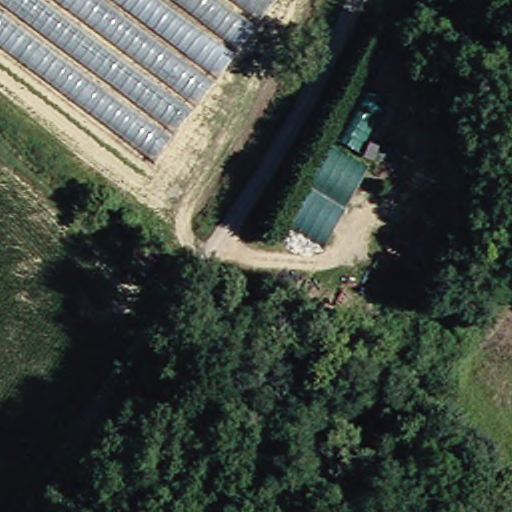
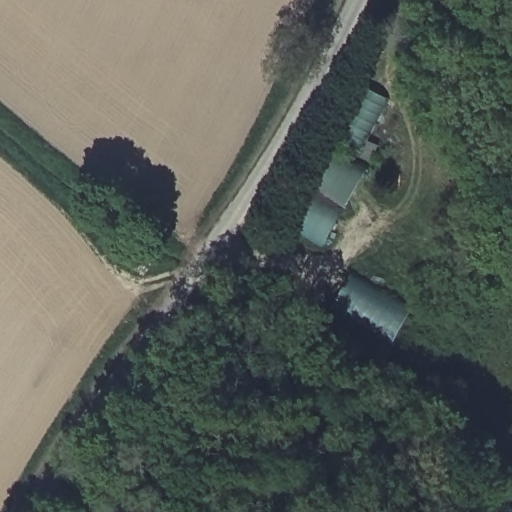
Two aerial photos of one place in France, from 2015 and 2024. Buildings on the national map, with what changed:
new [(151,160),(0,46),(0,0),(106,0),(211,78),(151,160)]
unchanged [(211,78),(106,0),(164,0),(234,51),(211,78)]
unchanged [(234,51),(164,0),(272,0),(275,2),(234,51)]
unchanged [(317,145),(362,170),(319,248),(272,223),(317,145)]
unchanged [(160,283),(148,297),(132,285),(143,270),(160,283)]
new [(351,278),(413,306),(393,347),(331,318),(351,278)]

